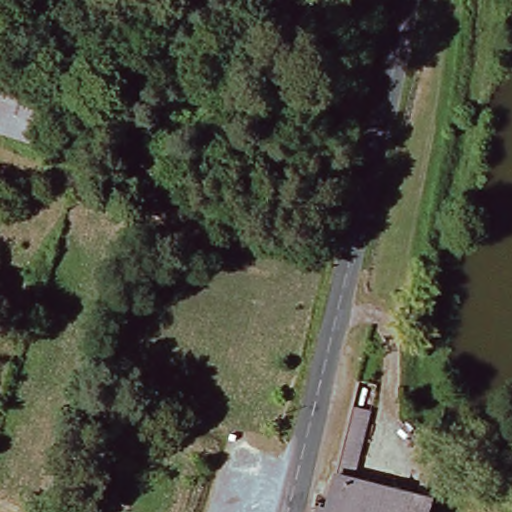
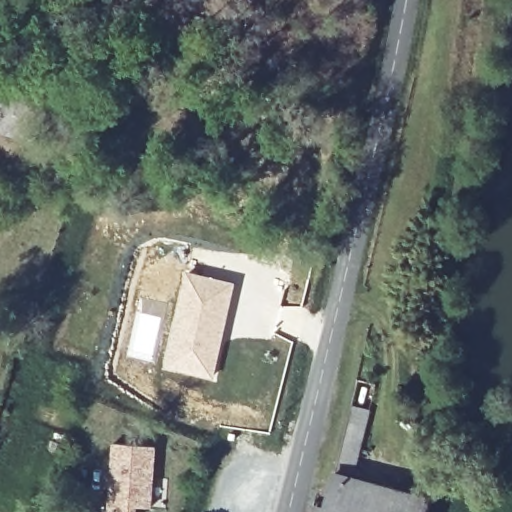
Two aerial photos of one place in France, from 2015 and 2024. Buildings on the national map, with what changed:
unchanged [(1,102),(43,114),(35,141),(0,131),(0,104),(1,102)]
new [(186,272),(235,283),(213,378),(163,367),(186,272)]
new [(157,446),(152,507),(137,506),(136,512),(107,512),(112,443),(157,446)]
unchanged [(336,477),(432,500),(428,512),(327,512),(336,477)]
unchanged [(318,510),(325,512),(318,512),(318,510)]

